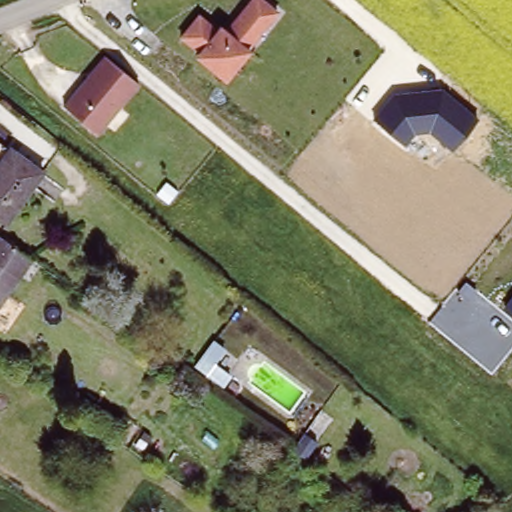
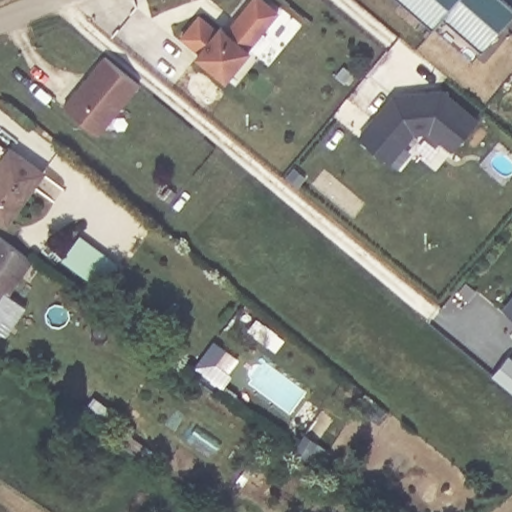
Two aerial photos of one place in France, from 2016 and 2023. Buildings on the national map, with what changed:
unchanged [(216,30),(221,25),(225,28),(251,0),(260,0),(275,12),(247,46),(251,49),(225,79),(196,54),(199,49),(181,35),(197,14),(216,30)]
new [(483,50),(443,16),(433,28),(401,0),(506,0),(512,5),(512,16),(483,50)]
unchanged [(140,83),(97,132),(63,105),(105,55),(140,83)]
unchanged [(393,93),(444,89),(480,117),(451,151),(430,132),(413,134),(404,146),(373,118),(393,93)]
unchanged [(41,168),(4,218),(0,215),(0,158),(10,145),(41,168)]
unchanged [(31,256),(0,298),(0,234),(16,246),(31,256)]
unchanged [(502,305),(512,293),(512,314),(502,305)]

